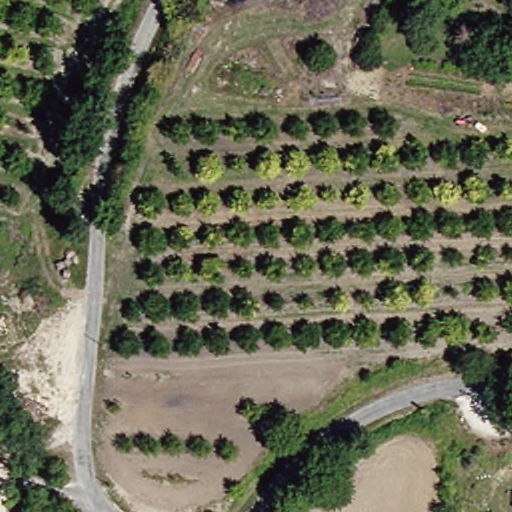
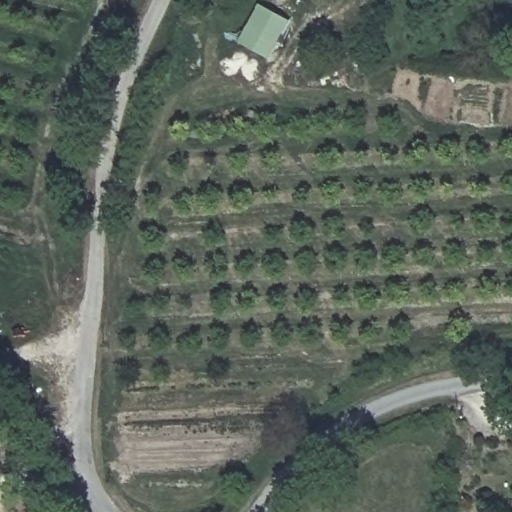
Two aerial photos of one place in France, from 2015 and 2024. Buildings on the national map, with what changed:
new [(260,4),(290,21),(268,59),(238,42),(260,4)]

